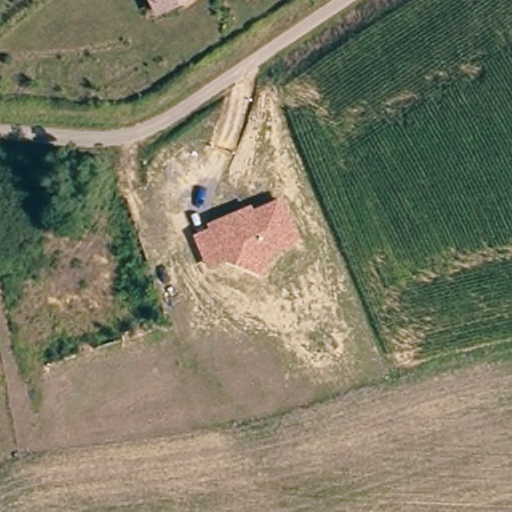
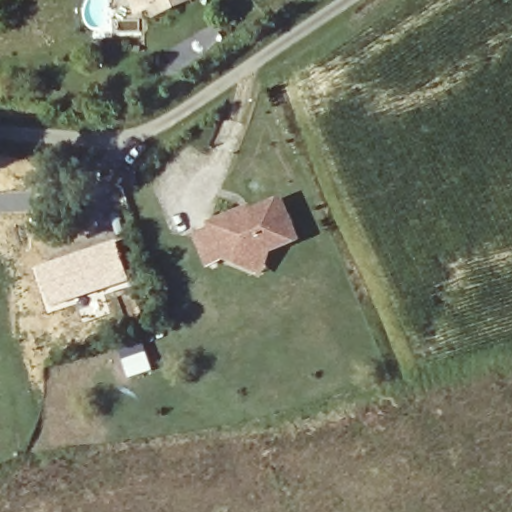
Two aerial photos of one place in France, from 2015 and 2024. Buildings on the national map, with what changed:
unchanged [(149,0),(195,0),(155,15),(149,0)]
unchanged [(192,237),(209,230),(205,224),(251,204),(254,210),(284,197),(301,241),(273,252),(262,278),(227,262),(207,270),(192,237)]
new [(117,240),(131,283),(47,314),(32,267),(117,240)]
new [(143,343),(152,372),(127,380),(119,351),(143,343)]

